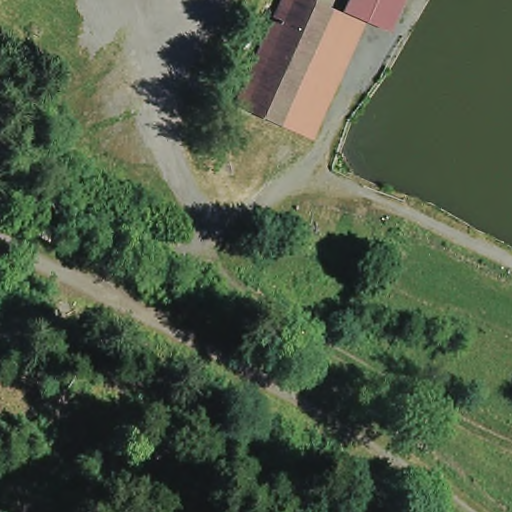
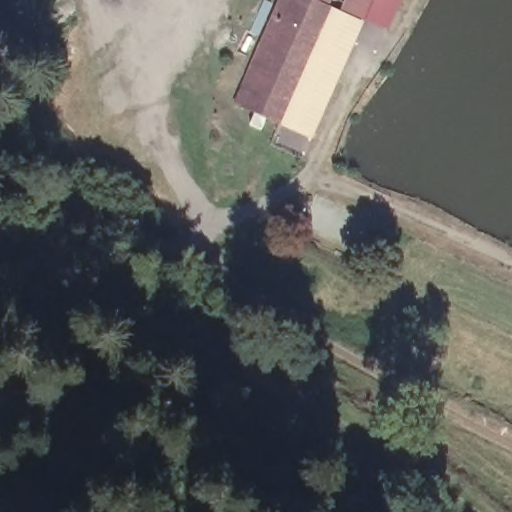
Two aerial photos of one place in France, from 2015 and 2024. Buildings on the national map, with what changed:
unchanged [(281,0),(406,0),(392,36),(367,24),(344,73),(316,141),(232,110),(281,0)]

